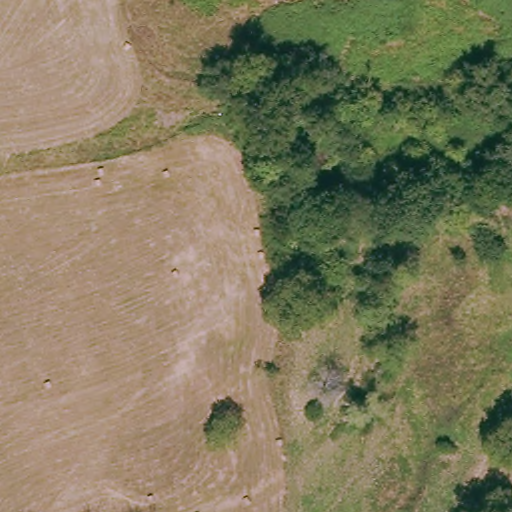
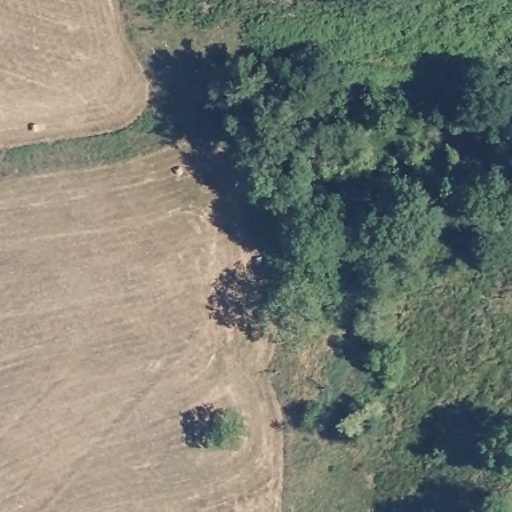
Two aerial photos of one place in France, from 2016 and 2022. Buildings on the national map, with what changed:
unchanged [(295,178),(274,175),(277,153),(299,156),(295,178)]

